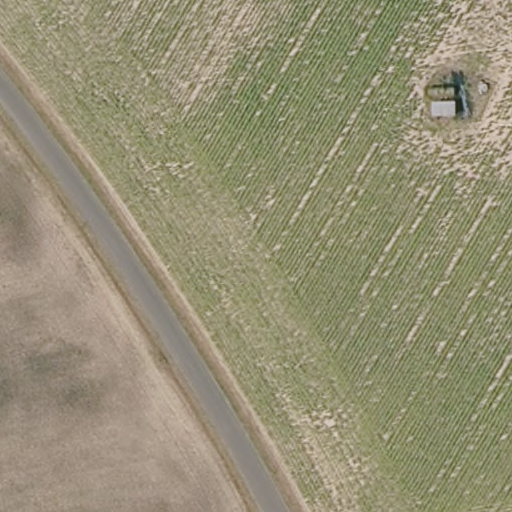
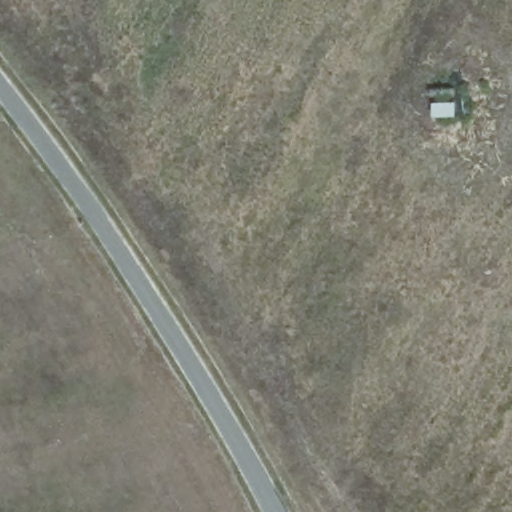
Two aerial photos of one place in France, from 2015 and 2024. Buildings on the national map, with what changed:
unchanged [(455,107),(456,117),(435,118),(435,107),(455,107)]

